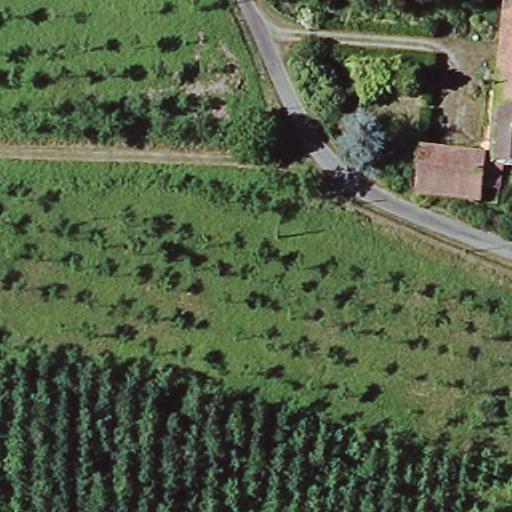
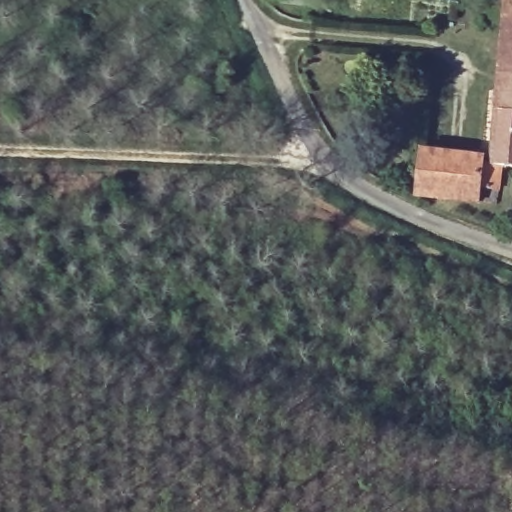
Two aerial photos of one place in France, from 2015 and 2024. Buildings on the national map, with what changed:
unchanged [(499,208),(409,191),(416,149),(484,156),(495,19),(468,16),(469,0),(512,0),(512,171),(504,170),(499,208)]

